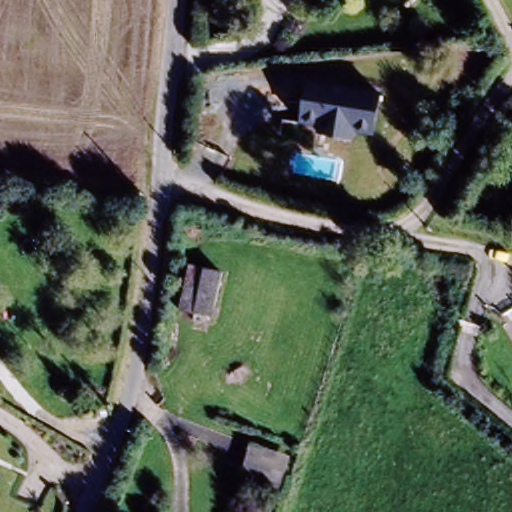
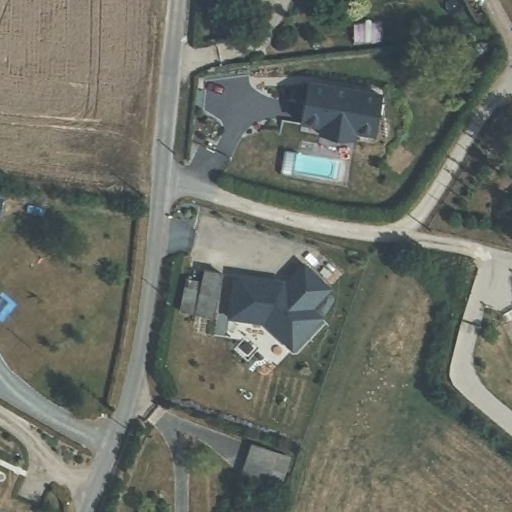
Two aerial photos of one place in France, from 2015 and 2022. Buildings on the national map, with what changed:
unchanged [(379,97),(373,136),(352,133),(351,140),(334,141),(320,135),(320,127),(301,124),(307,84),(379,97)]
unchanged [(209,318),(176,312),(185,267),(219,274),(209,318)]
new [(273,283),(285,285),(286,287),(305,267),(330,290),(312,308),(324,320),(295,351),(266,324),(230,319),(236,278),(273,283)]
unchanged [(253,446),(277,454),(272,469),(285,473),(280,488),(242,475),(253,446)]

